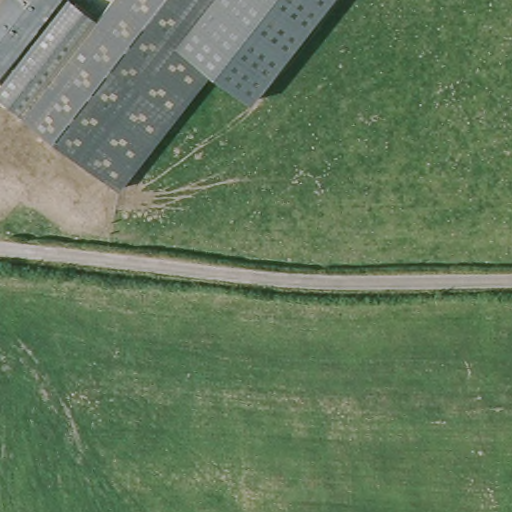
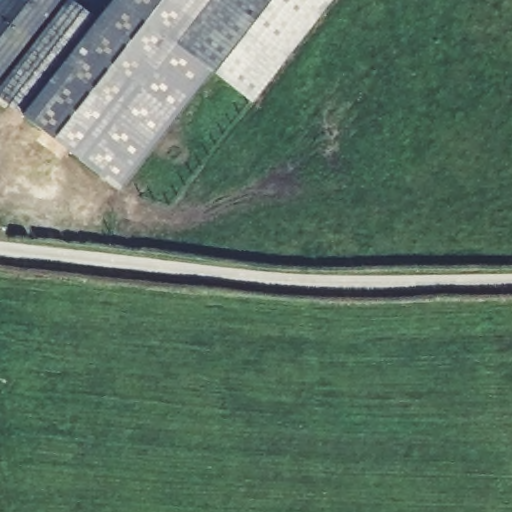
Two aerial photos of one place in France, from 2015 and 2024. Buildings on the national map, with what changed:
unchanged [(56,0),(0,69),(0,0),(56,0)]
unchanged [(65,0),(70,0),(99,22),(26,115),(0,98),(0,85),(65,0)]
unchanged [(116,0),(215,0),(179,44),(87,161),(26,115),(116,0)]
unchanged [(215,74),(179,44),(215,0),(330,0),(252,103),(215,74)]
unchanged [(122,190),(87,161),(179,44),(215,74),(158,146),(122,190)]

